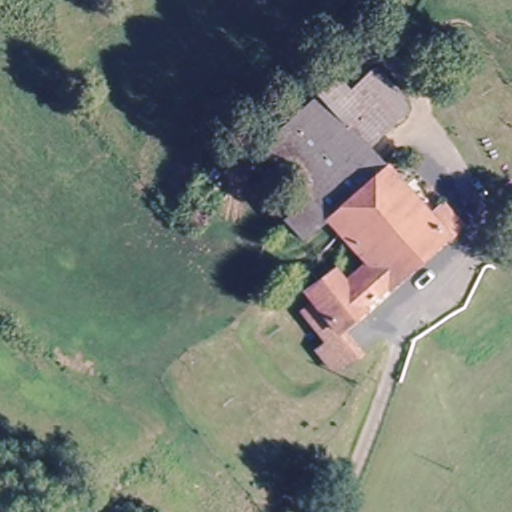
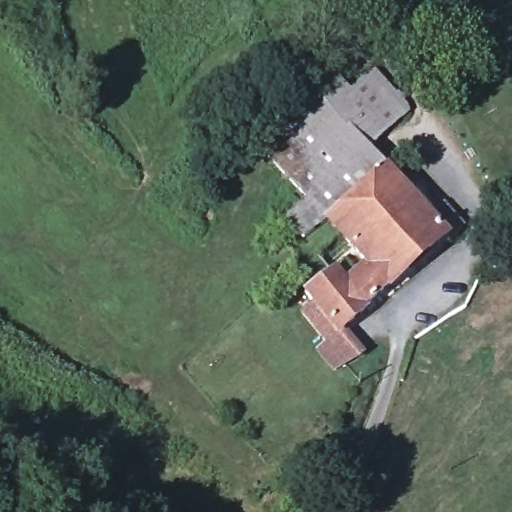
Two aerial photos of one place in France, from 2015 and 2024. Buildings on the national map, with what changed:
unchanged [(362,356),(343,366),(325,347),(333,340),(307,311),(318,301),(307,290),(334,266),(335,267),(353,250),(327,222),(299,233),(284,214),(309,192),(290,172),(265,146),(336,78),(350,92),(372,70),(385,84),(395,94),(397,96),(407,107),(382,131),(366,145),(434,210),(447,200),(470,224),(456,238),(448,231),(369,304),(370,306),(344,330),(366,354),(362,356)]

